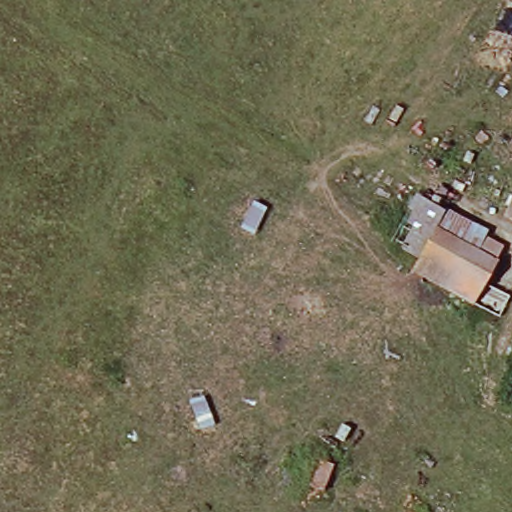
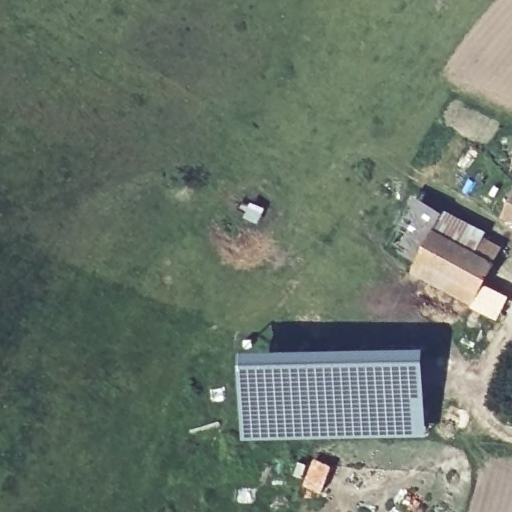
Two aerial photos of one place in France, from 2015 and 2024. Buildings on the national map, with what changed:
unchanged [(506,217),(512,202),(512,219),(506,217)]
unchanged [(476,306),(414,273),(436,234),(497,266),(476,306)]
new [(244,344),(428,342),(430,433),(244,436),(242,395),(244,344)]
new [(297,459),(311,463),(313,457),(332,464),(319,494),(302,487),(305,477),(292,473),(297,459)]

